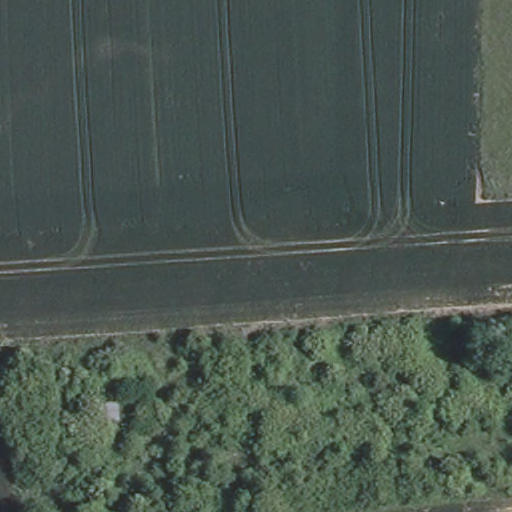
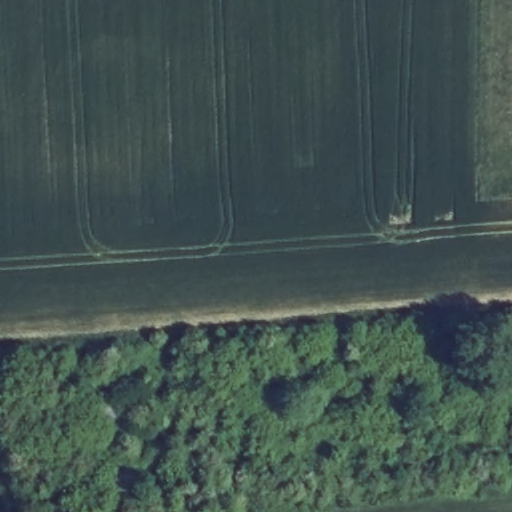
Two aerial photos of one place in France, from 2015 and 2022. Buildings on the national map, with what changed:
unchanged [(117,430),(95,429),(92,406),(115,406),(117,430)]

